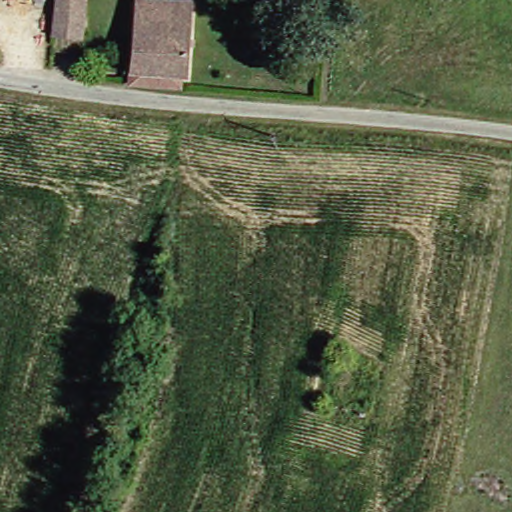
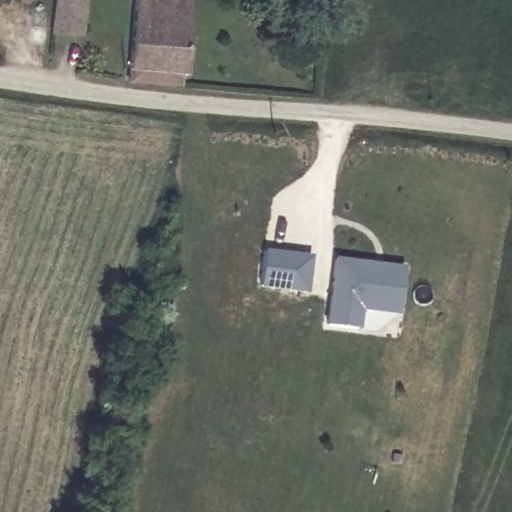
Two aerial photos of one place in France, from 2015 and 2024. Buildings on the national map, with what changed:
unchanged [(47,36),(52,0),(81,0),(78,40),(47,36)]
unchanged [(186,0),(180,74),(174,75),(174,89),(122,80),(125,67),(132,0),(186,0)]
new [(258,252),(305,258),(301,293),(254,287),(258,252)]
new [(357,312),(355,331),(322,326),(330,259),(400,267),(395,316),(357,312)]

